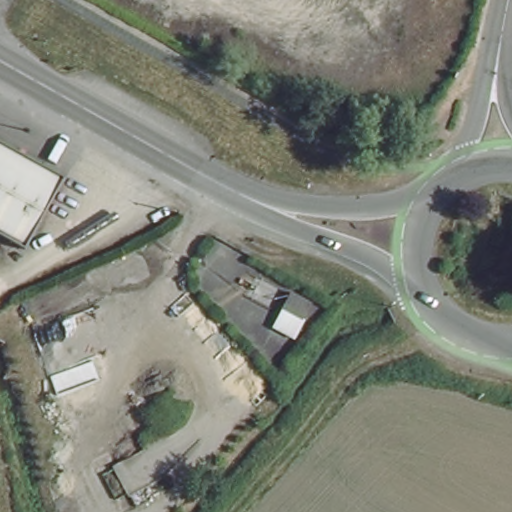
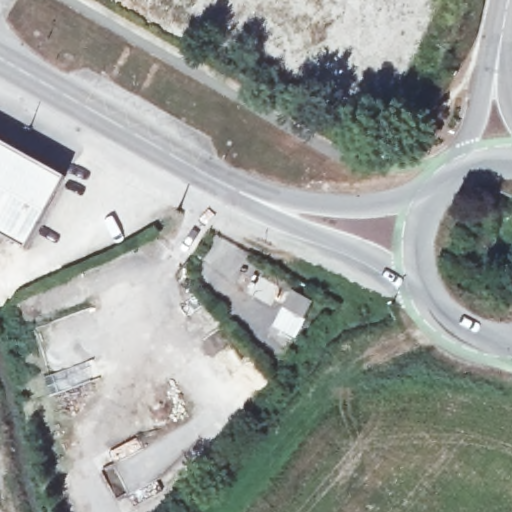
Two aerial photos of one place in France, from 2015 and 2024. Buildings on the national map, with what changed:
unchanged [(26,247),(0,232),(0,144),(65,178),(26,247)]

